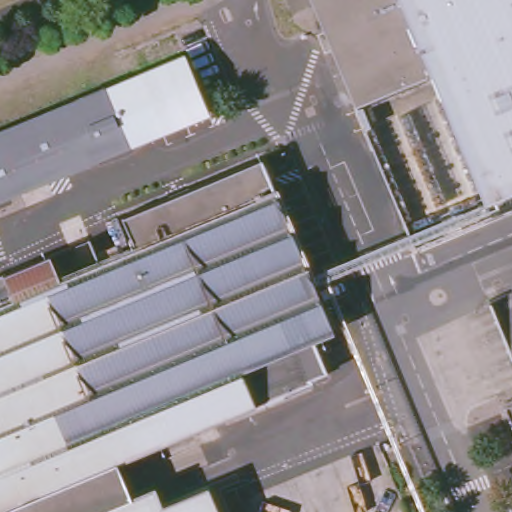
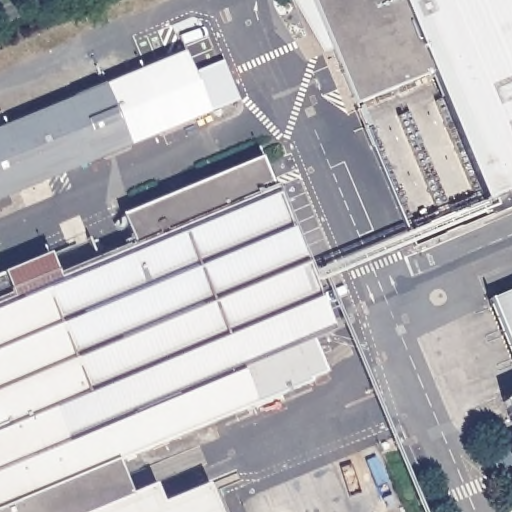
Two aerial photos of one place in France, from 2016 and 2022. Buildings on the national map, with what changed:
unchanged [(293,0),(296,0),(294,1),(293,0)]
unchanged [(487,193),(486,194),(432,65),(353,98),(312,0),(512,0),(512,201),(494,208),(487,193)]
unchanged [(181,55),(205,113),(0,197),(0,129),(181,55)]
unchanged [(62,276),(137,245),(124,214),(262,156),(333,325),(313,334),(326,366),(311,372),(312,375),(117,457),(130,488),(152,479),(161,500),(207,480),(220,512),(0,512),(0,273),(7,270),(18,295),(62,276)]
unchanged [(52,252),(62,276),(18,295),(7,270),(52,252)]
unchanged [(512,292),(512,339),(496,299),(512,292)]
unchanged [(512,393),(512,406),(507,395),(512,393)]

